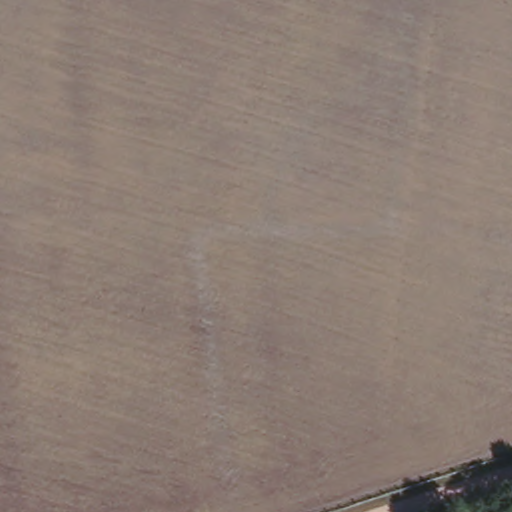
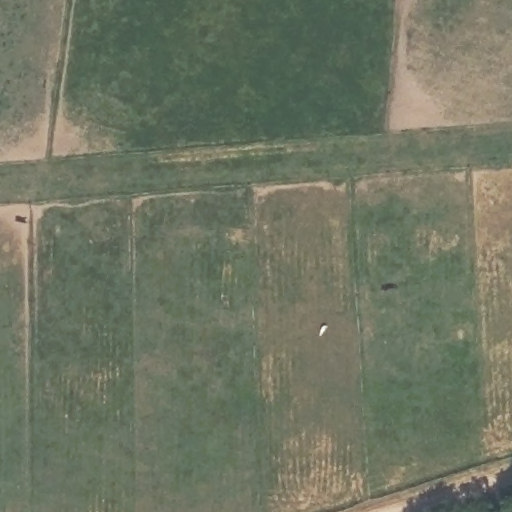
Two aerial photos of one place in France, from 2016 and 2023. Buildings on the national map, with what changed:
[]

